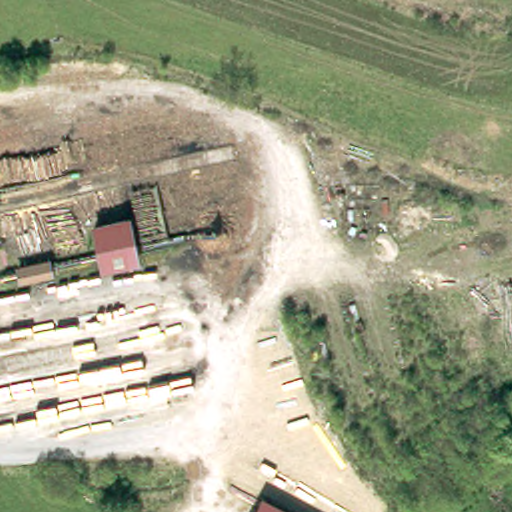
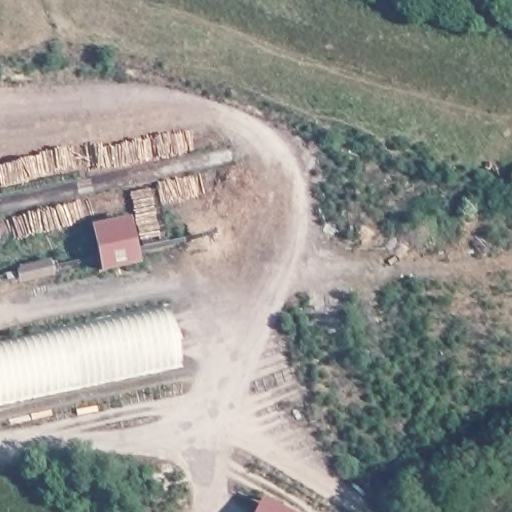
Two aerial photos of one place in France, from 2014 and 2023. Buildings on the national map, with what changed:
unchanged [(138,255),(104,264),(96,225),(125,219),(130,217),(134,233),(138,255)]
unchanged [(50,261),(52,270),(18,279),(16,270),(50,261)]
new [(183,362),(0,401),(0,340),(170,303),(183,362)]
unchanged [(302,512),(253,512),(264,492),(302,512)]

